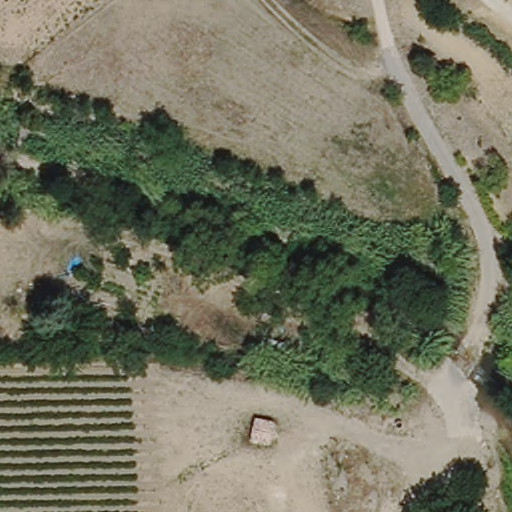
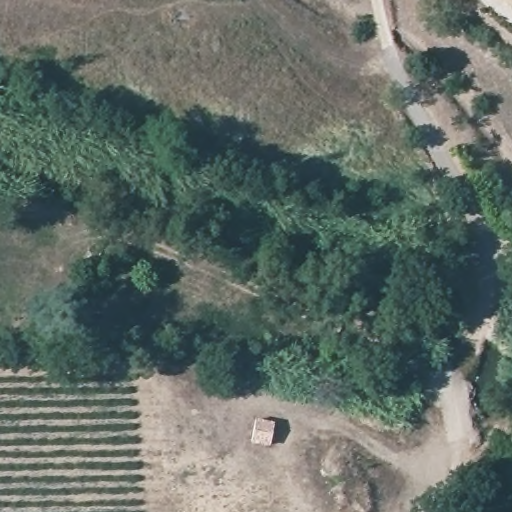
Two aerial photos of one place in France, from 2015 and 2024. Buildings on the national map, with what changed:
unchanged [(80,322),(103,322),(102,345),(79,345),(80,322)]

